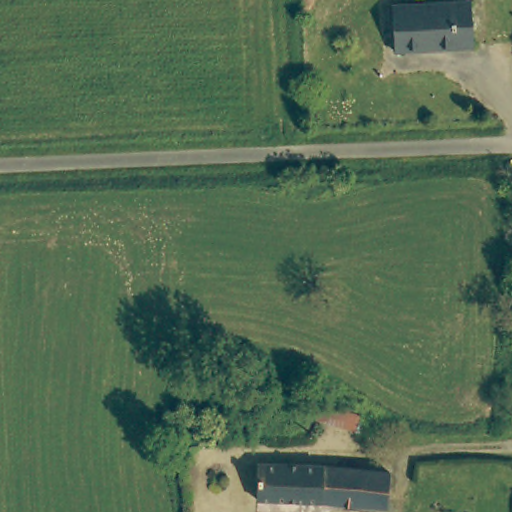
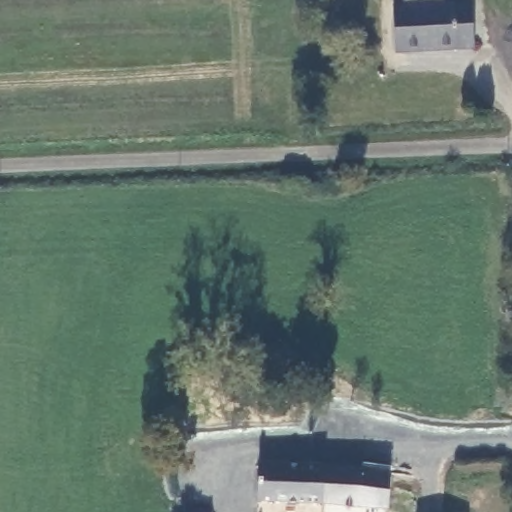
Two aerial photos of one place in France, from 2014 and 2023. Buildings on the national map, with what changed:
unchanged [(477,0),(480,49),(402,54),(400,5),(477,0)]
unchanged [(314,185),(316,185),(320,186),(323,188),(324,192),(323,196),(320,199),(316,200),(312,200),(311,204),(286,201),(287,180),(315,182),(314,185)]
unchanged [(366,412),(365,428),(320,422),(320,405),(366,412)]
unchanged [(265,502),(268,466),(343,467),(368,469),(367,506),(265,502)]

